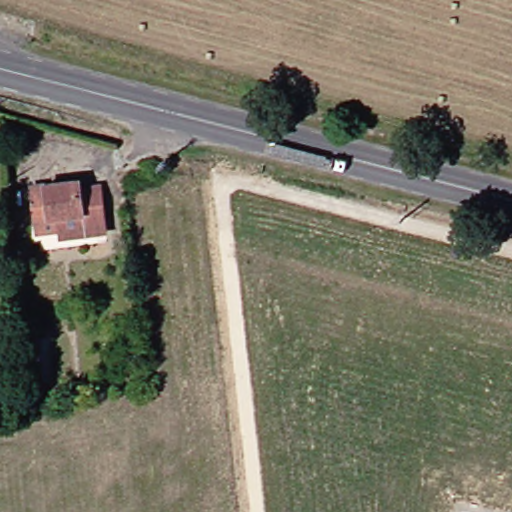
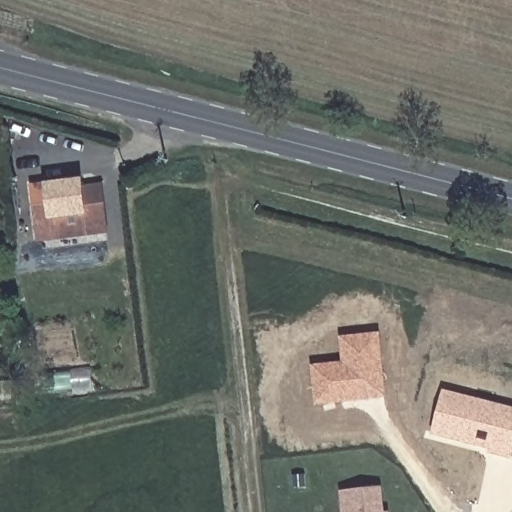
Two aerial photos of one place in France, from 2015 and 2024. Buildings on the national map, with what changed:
unchanged [(0,108),(0,99),(6,101),(4,109),(0,108)]
unchanged [(89,183),(106,181),(112,226),(67,231),(65,212),(42,214),(40,181),(87,175),(89,183)]
new [(312,365),(342,362),(339,337),(380,332),(386,397),(316,406),(312,365)]
new [(442,390),(512,407),(512,459),(488,453),(489,450),(432,436),(442,390)]
new [(344,512),(342,491),(381,487),(383,512),(344,512)]

